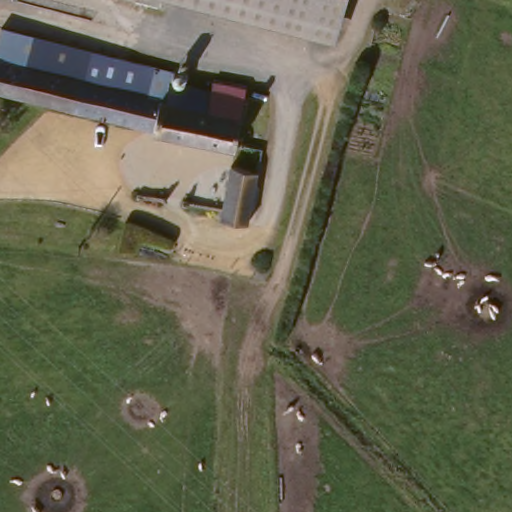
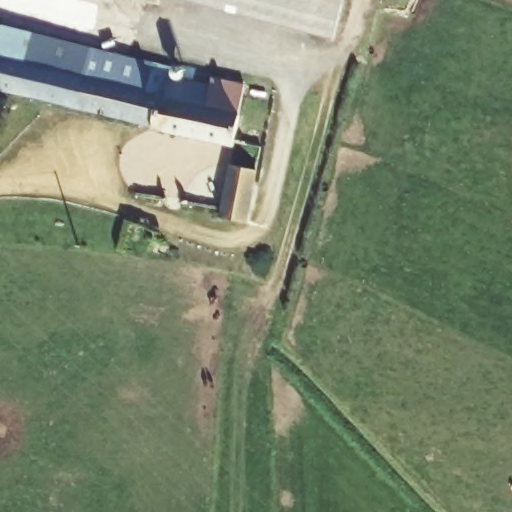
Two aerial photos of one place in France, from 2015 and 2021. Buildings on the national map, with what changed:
unchanged [(328,36),(284,24),(217,6),(195,0),(338,0),(328,36)]
unchanged [(0,32),(47,43),(41,70),(0,60),(0,32)]
unchanged [(171,74),(169,80),(165,99),(41,70),(47,43),(171,74)]
unchanged [(202,75),(247,85),(239,119),(233,145),(233,150),(154,133),(156,125),(108,115),(0,91),(0,60),(41,70),(165,99),(169,80),(199,87),(202,75)]
unchanged [(248,216),(245,229),(216,222),(218,212),(231,156),(261,162),(248,216)]

